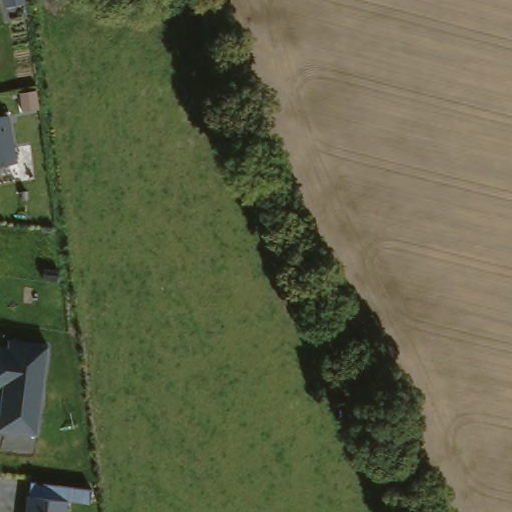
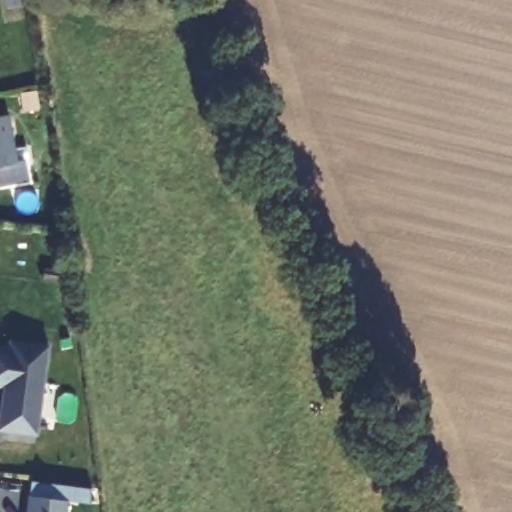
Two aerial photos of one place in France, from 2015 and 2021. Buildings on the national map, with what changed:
unchanged [(6,114),(15,158),(0,161),(0,115),(6,114)]
unchanged [(6,347),(9,338),(51,345),(39,433),(0,428),(0,412),(3,388),(0,387),(0,346),(6,347)]
unchanged [(69,495),(68,512),(25,512),(26,492),(69,495)]

